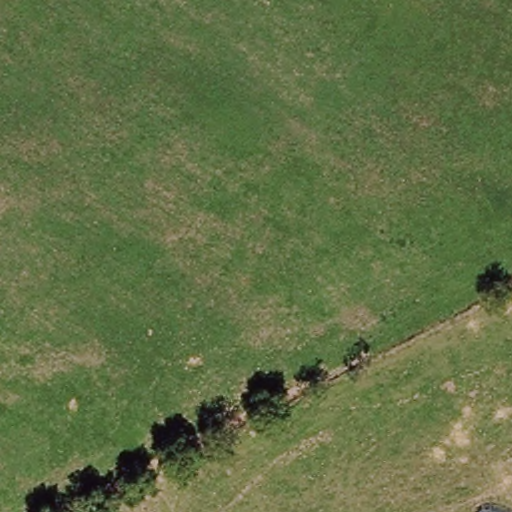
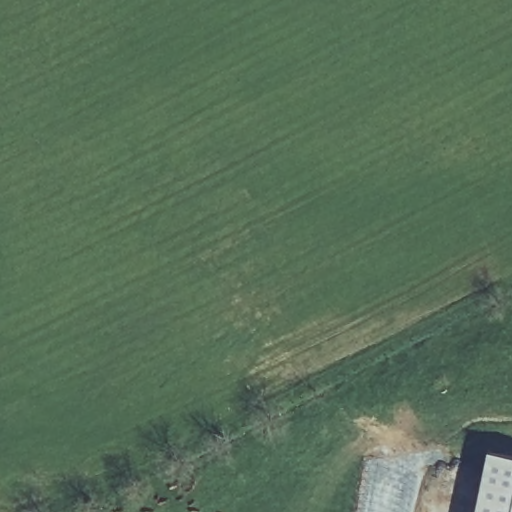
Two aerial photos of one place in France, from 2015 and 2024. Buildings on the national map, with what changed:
new [(474,512),(487,449),(512,455),(512,512),(474,512)]

